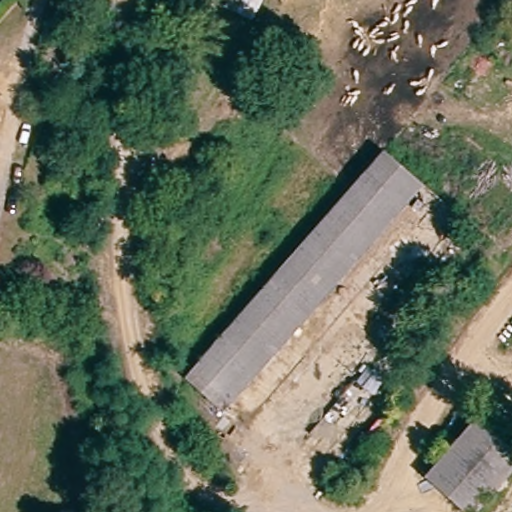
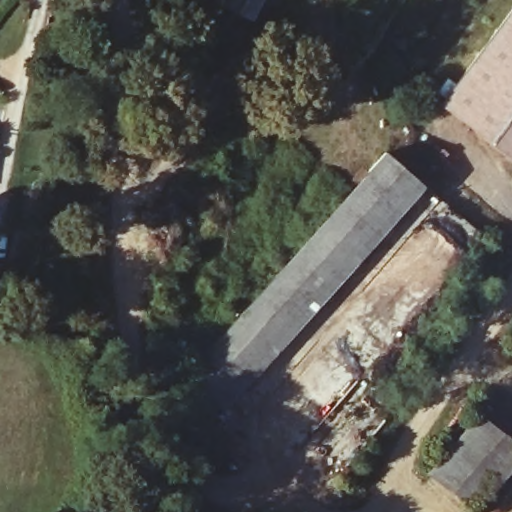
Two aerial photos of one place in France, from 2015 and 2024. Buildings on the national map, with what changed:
new [(512,11),(512,156),(442,104),(512,11)]
unchanged [(185,368),(399,156),(433,189),(219,402),(185,368)]
demolished [(388,343),(368,324),(413,271),(432,288),(388,343)]
unchanged [(486,416),(512,442),(512,479),(479,512),(477,512),(433,469),(486,416)]

